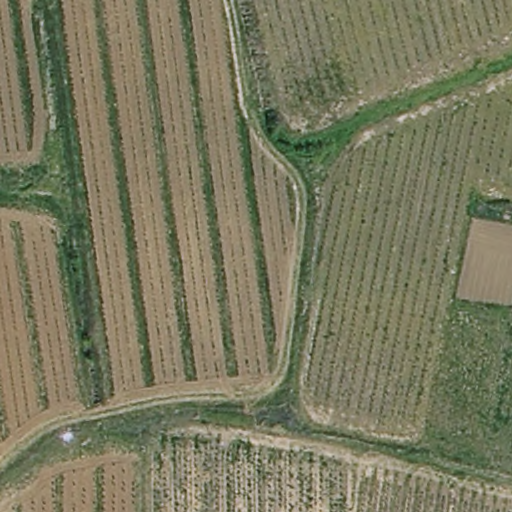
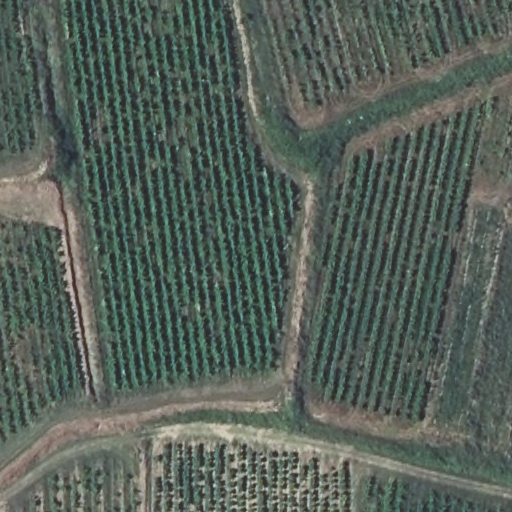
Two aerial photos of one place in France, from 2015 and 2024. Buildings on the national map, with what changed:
[]

